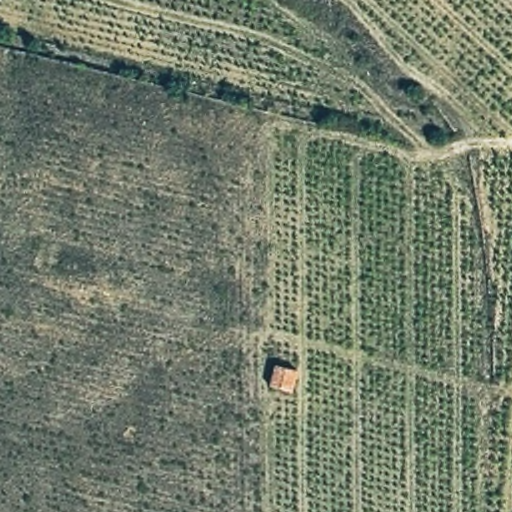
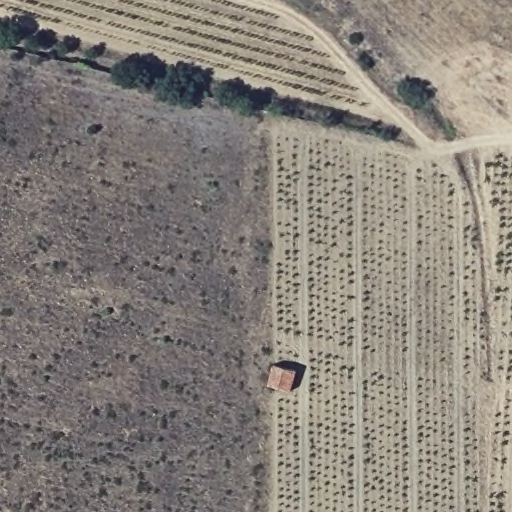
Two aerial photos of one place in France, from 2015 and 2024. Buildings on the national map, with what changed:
unchanged [(273,365),(298,373),(293,386),(268,380),(273,365)]

